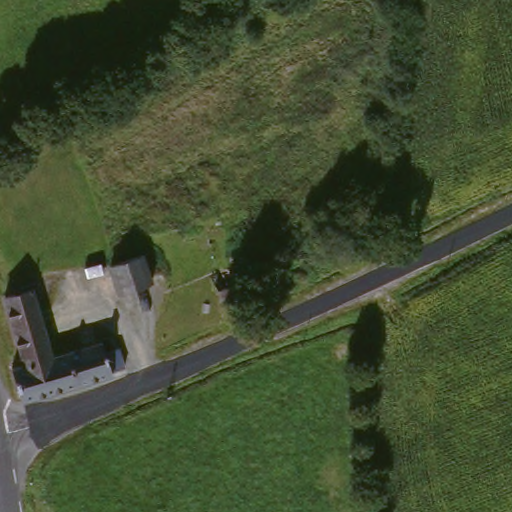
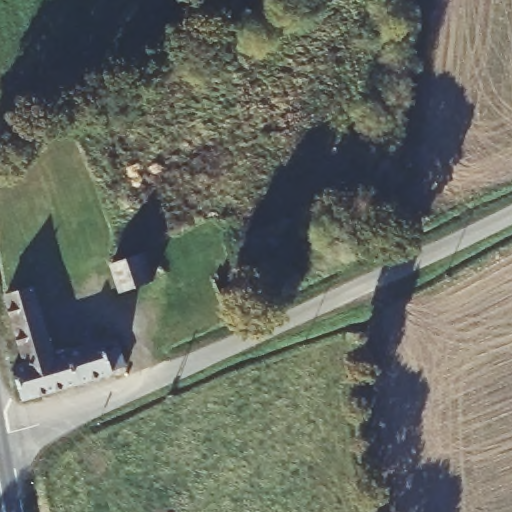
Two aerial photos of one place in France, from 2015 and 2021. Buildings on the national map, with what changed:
unchanged [(119,276),(115,264),(147,254),(157,283),(130,292),(125,294),(119,276)]
unchanged [(16,302),(41,297),(47,295),(49,307),(50,313),(57,361),(57,362),(66,360),(64,345),(75,342),(76,342),(83,341),(92,339),(92,341),(107,337),(114,358),(119,370),(118,370),(86,384),(36,406),(22,412),(15,373),(28,369),(16,302)]

